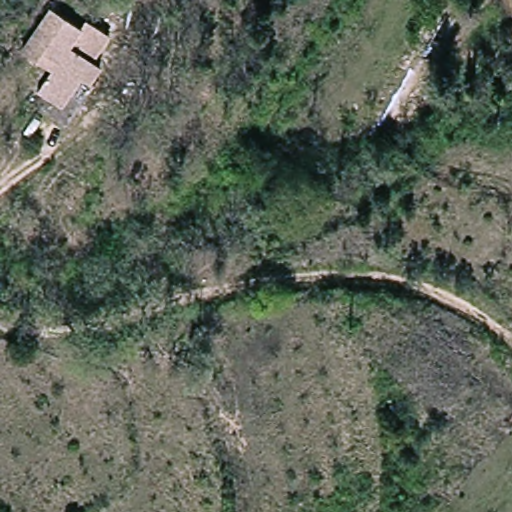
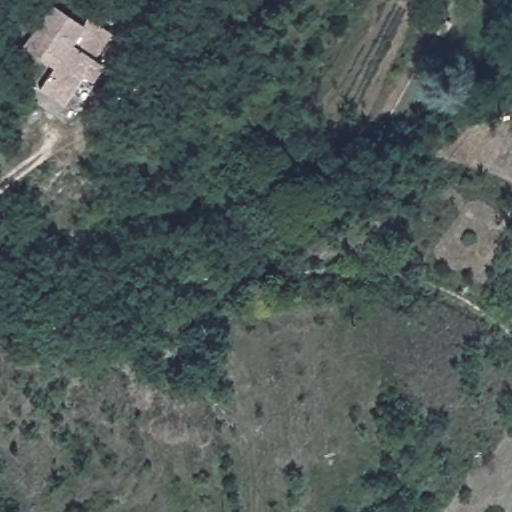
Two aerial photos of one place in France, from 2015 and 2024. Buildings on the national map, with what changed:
unchanged [(85,21),(91,11),(117,25),(92,63),(101,67),(92,83),(83,78),(65,105),(43,90),(58,67),(27,50),(54,5),(85,21)]

